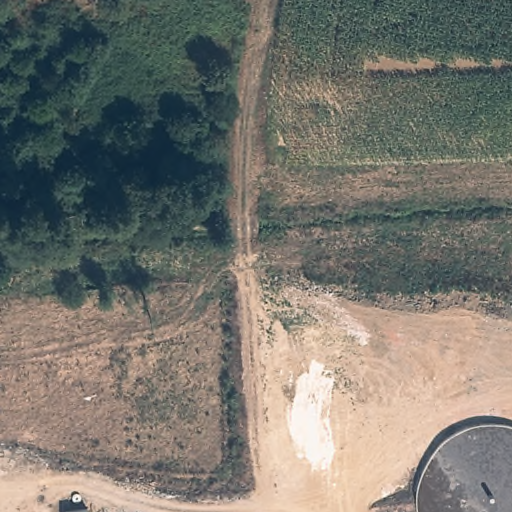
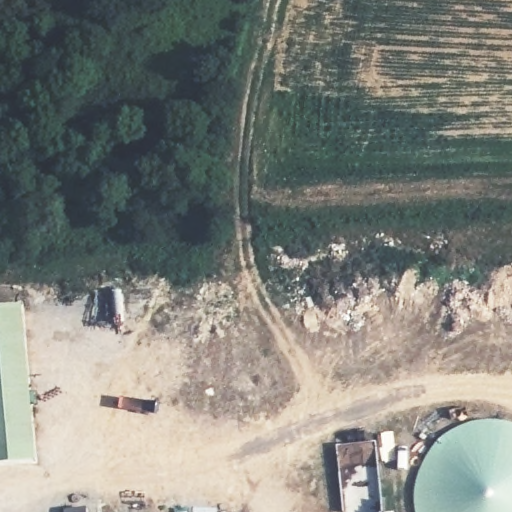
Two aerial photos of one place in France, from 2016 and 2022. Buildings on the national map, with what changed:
new [(22,305),(36,461),(0,465),(0,308),(22,305)]

